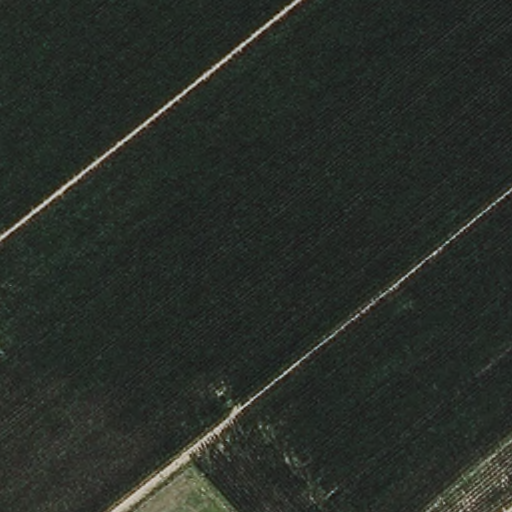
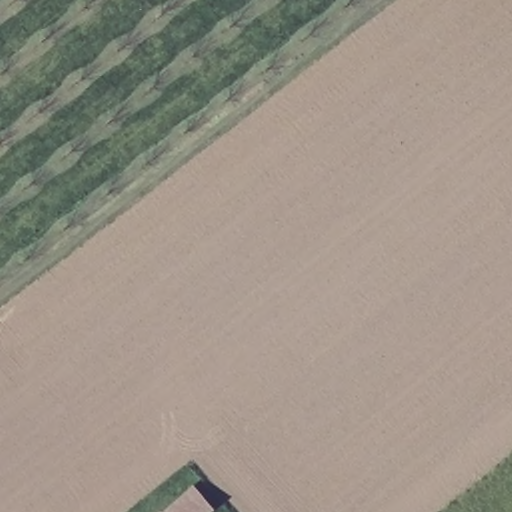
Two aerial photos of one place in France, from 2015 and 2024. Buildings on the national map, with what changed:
new [(164,512),(195,486),(215,509),(212,512),(164,512)]

